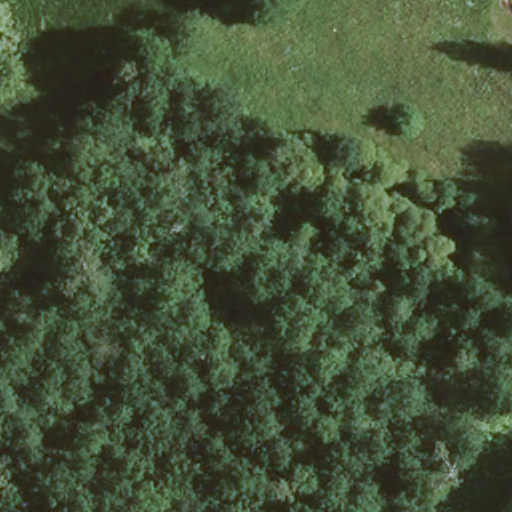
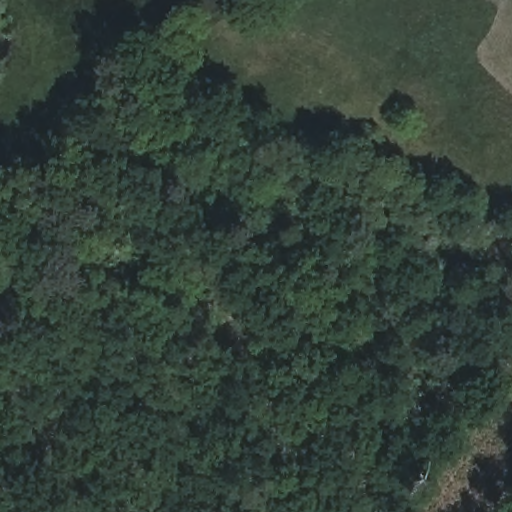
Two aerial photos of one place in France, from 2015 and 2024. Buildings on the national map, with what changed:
[]

